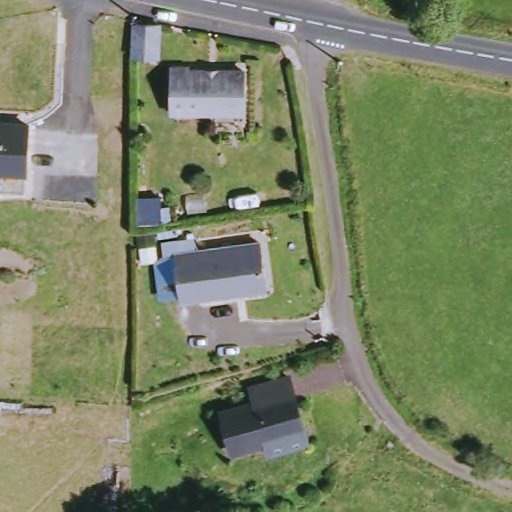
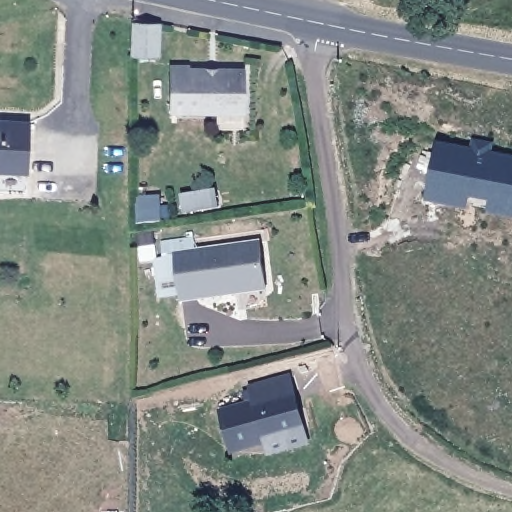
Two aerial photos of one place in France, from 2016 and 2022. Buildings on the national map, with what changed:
unchanged [(196,71),(196,75),(251,75),(250,116),(177,116),(176,71),(196,71)]
unchanged [(26,193),(0,191),(0,182),(1,170),(0,170),(0,122),(33,126),(26,193)]
new [(438,142),(471,148),(473,140),(494,145),(494,153),(512,156),(512,218),(488,213),(489,209),(469,204),(468,210),(426,201),(438,142)]
unchanged [(233,292),(178,298),(173,251),(257,241),(261,281),(263,288),(233,292)]
unchanged [(266,449),(262,437),(229,446),(218,407),(251,398),(246,383),(283,372),(288,388),(291,402),(299,426),(302,438),(266,449)]

